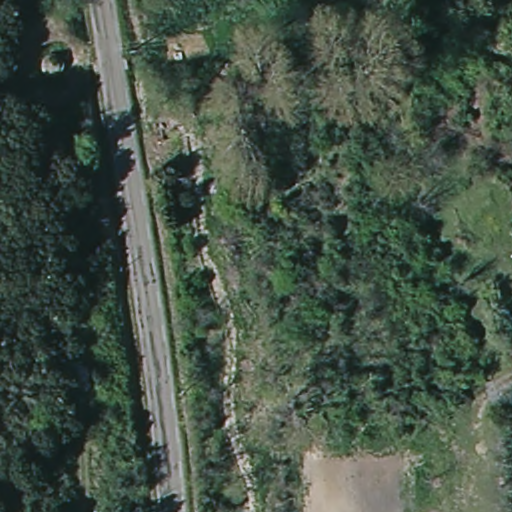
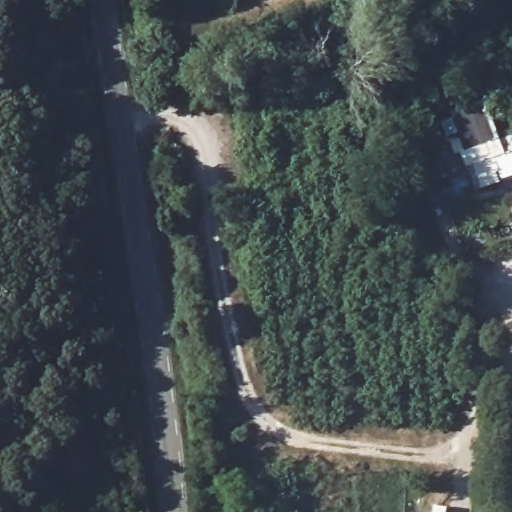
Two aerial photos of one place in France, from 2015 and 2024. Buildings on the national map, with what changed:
unchanged [(65,50),(70,76),(42,81),(37,55),(65,50)]
new [(487,101),(500,140),(512,135),(512,154),(505,157),(492,161),(501,184),(477,190),(467,170),(462,152),(465,150),(452,112),(487,101)]

